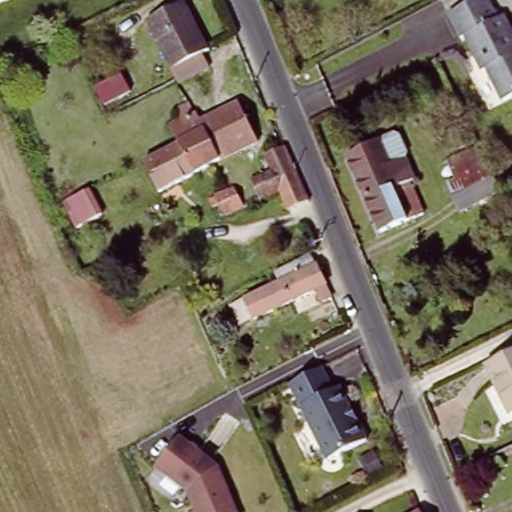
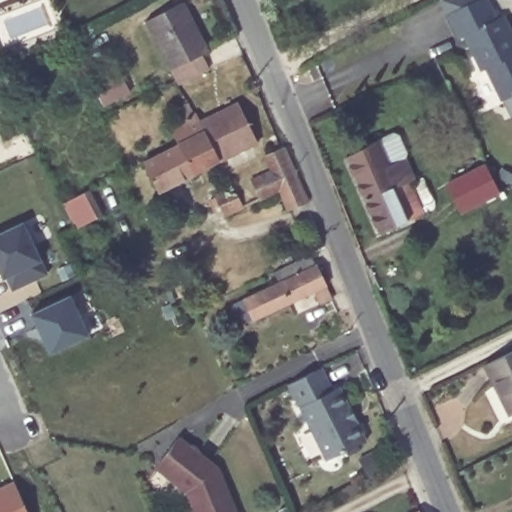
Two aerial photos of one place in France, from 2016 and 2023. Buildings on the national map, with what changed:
unchanged [(491,0),(498,13),(504,10),(512,27),(512,91),(503,96),(487,63),(482,66),(465,31),(460,33),(449,8),(465,0),(491,0)]
unchanged [(179,84),(176,80),(171,70),(146,21),(184,1),(209,51),(203,54),(207,63),(210,68),(179,84)]
unchanged [(128,91),(105,103),(97,88),(120,76),(128,91)]
unchanged [(218,169),(199,179),(164,197),(149,167),(184,149),(173,130),(185,124),(180,115),(195,107),(206,126),(224,166),(218,169)]
unchanged [(224,166),(206,126),(244,108),(262,146),(224,166)]
unchanged [(379,148),(396,139),(401,141),(408,156),(406,162),(415,184),(410,186),(425,218),(381,238),(347,161),(377,144),(379,148)]
unchanged [(447,185),(438,168),(478,147),(487,165),(500,192),(460,212),(447,185)]
unchanged [(255,185),(277,176),(270,160),(287,153),(290,151),(299,173),(305,185),(314,207),(301,212),(294,215),(285,195),(264,205),(255,185)]
unchanged [(224,216),(219,204),(213,208),(209,201),(216,198),(215,196),(228,191),(234,188),(244,208),(224,216)]
unchanged [(84,190),(97,215),(72,228),(59,203),(84,190)]
new [(12,289),(4,276),(0,268),(0,233),(24,222),(42,261),(39,262),(46,274),(12,289)]
unchanged [(231,315),(245,308),(280,293),(275,282),(311,264),(316,276),(318,275),(327,295),(327,296),(333,308),(323,313),(316,300),(255,329),(255,327),(240,335),(231,315)]
new [(50,352),(33,314),(72,296),(89,334),(50,352)]
unchanged [(485,365),(512,351),(512,413),(510,414),(485,365)]
unchanged [(327,389),(334,386),(344,406),(342,407),(348,421),(350,420),(360,440),(320,460),(283,383),(316,367),(327,389)]
unchanged [(215,469),(234,512),(194,512),(185,491),(153,466),(175,438),(215,469)]
new [(13,481),(28,512),(0,512),(0,487),(13,481)]
unchanged [(420,511),(421,512),(418,512),(420,511)]

